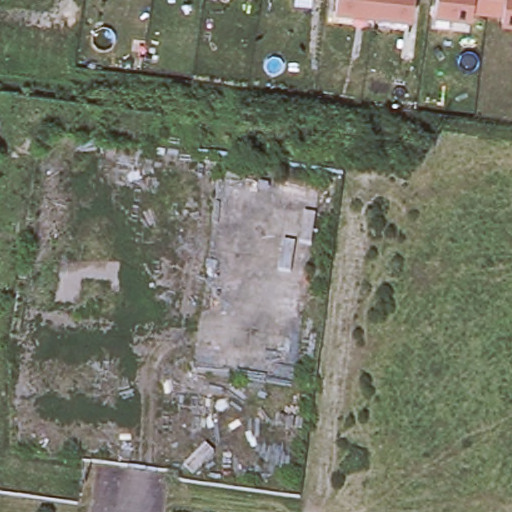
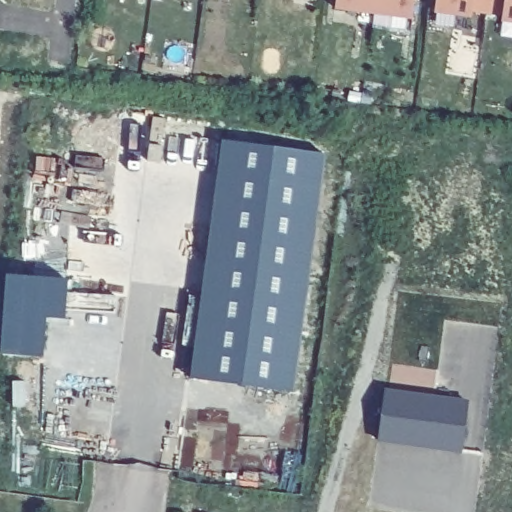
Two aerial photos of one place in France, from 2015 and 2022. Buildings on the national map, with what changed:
unchanged [(410,21),(336,10),(337,0),(412,0),(410,21)]
unchanged [(500,24),(501,14),(470,10),(470,21),(435,17),(437,0),(512,0),(512,26),(500,24)]
new [(221,142),(323,155),(314,219),(310,219),(233,281),(196,325),(221,142)]
new [(196,325),(233,281),(310,219),(314,219),(290,393),(189,380),(196,325)]
new [(6,275),(65,278),(64,317),(44,317),(42,355),(2,355),(6,275)]
new [(383,390),(467,401),(460,450),(376,438),(383,390)]

